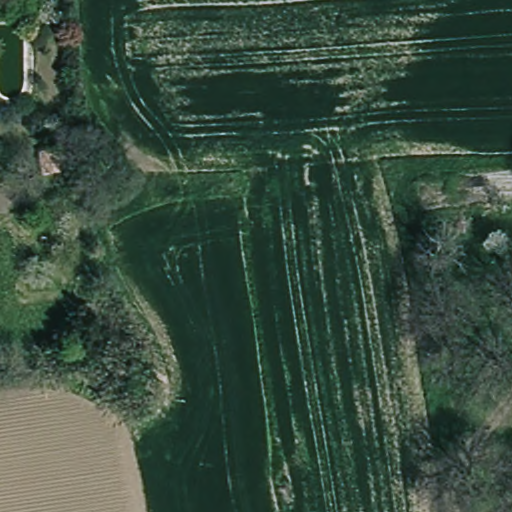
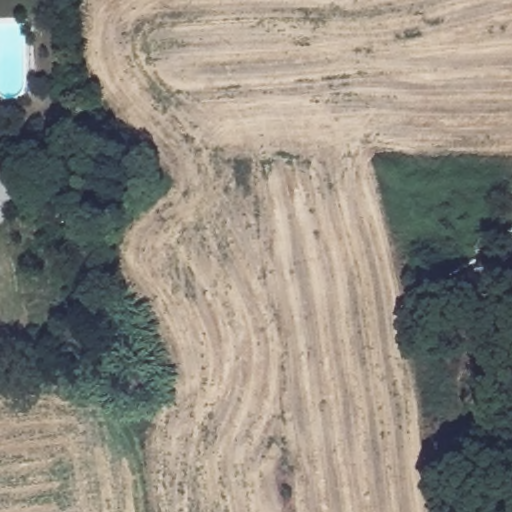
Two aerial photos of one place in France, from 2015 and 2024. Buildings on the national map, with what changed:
unchanged [(41,156),(64,154),(66,178),(42,179),(41,156)]
unchanged [(119,372),(146,368),(150,392),(123,396),(119,372)]

